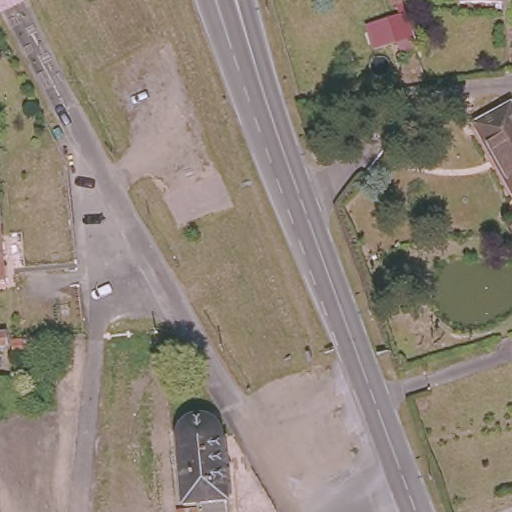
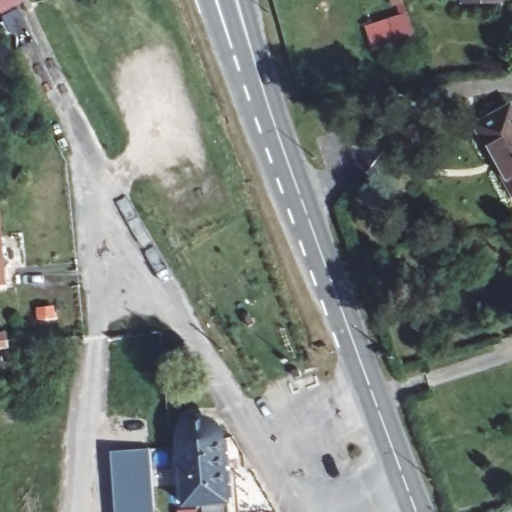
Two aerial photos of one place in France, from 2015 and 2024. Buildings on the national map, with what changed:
new [(26,1),(0,14),(0,0),(25,0),(26,1)]
unchanged [(411,14),(392,20),(387,0),(406,0),(411,14)]
unchanged [(500,5),(458,3),(458,0),(500,0),(500,5)]
unchanged [(482,122),(512,106),(512,175),(482,122)]
unchanged [(0,281),(0,209),(7,280),(0,281)]
unchanged [(201,510),(200,495),(182,495),(176,435),(181,434),(181,432),(181,430),(182,428),(182,426),(182,425),(184,423),(185,422),(186,420),(187,420),(189,418),(190,417),(192,416),(194,416),(196,415),(197,415),(199,415),(201,415),(202,415),(205,416),(206,416),(207,417),(210,418),(211,420),(212,420),(213,422),(214,423),(215,425),(216,427),(217,428),(217,430),(222,430),(227,507),(201,510)]
new [(149,448),(154,512),(114,512),(109,451),(149,448)]

